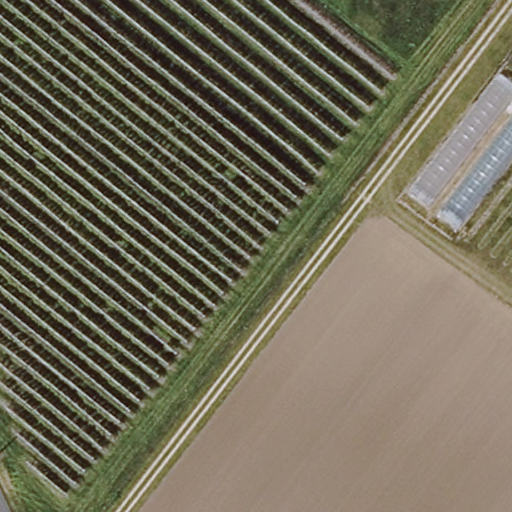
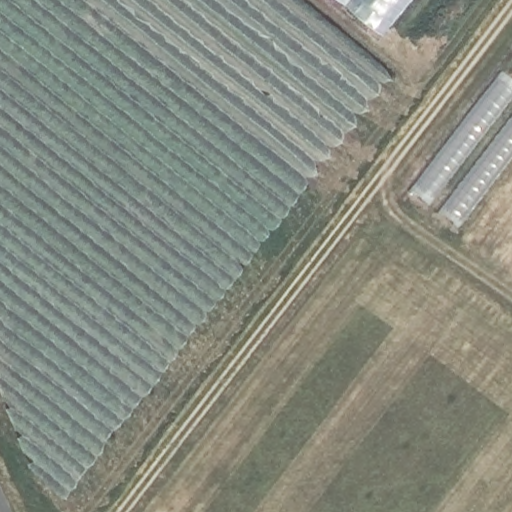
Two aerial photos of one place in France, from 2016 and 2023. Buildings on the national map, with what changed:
new [(343,0),(408,0),(382,31),(343,0)]
unchanged [(458,225),(406,188),(498,72),(512,82),(512,154),(458,225)]

